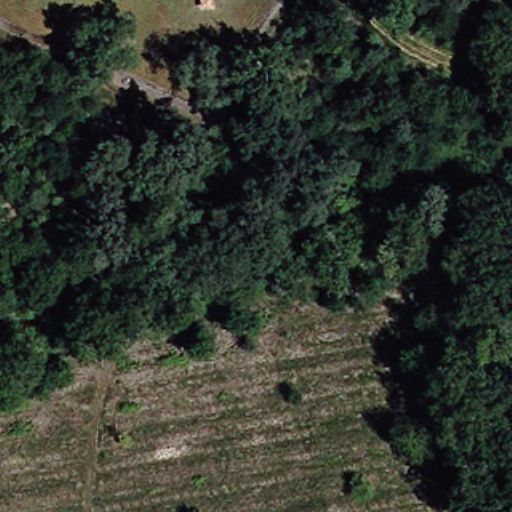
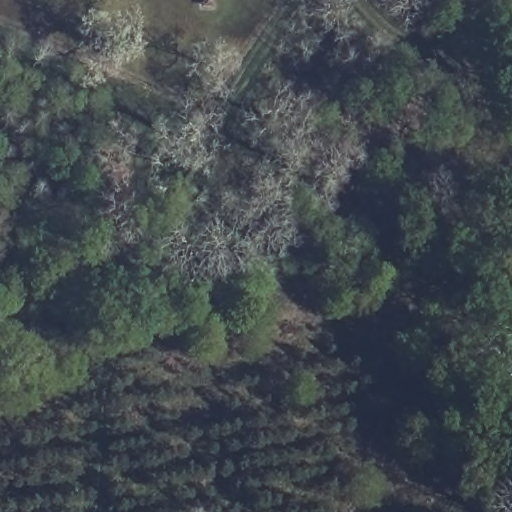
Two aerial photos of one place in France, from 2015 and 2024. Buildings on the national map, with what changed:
unchanged [(79,35),(80,13),(105,13),(107,35),(93,35),(79,35)]

